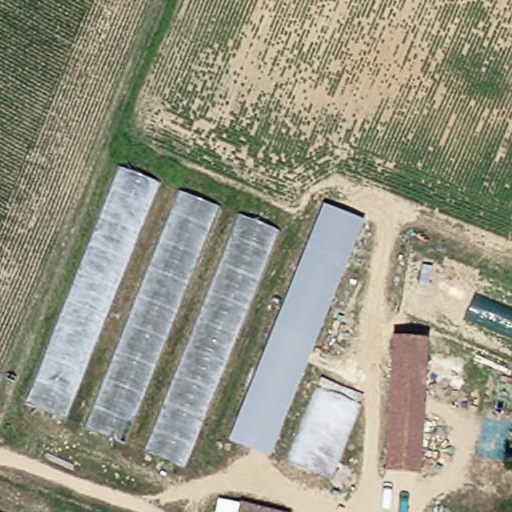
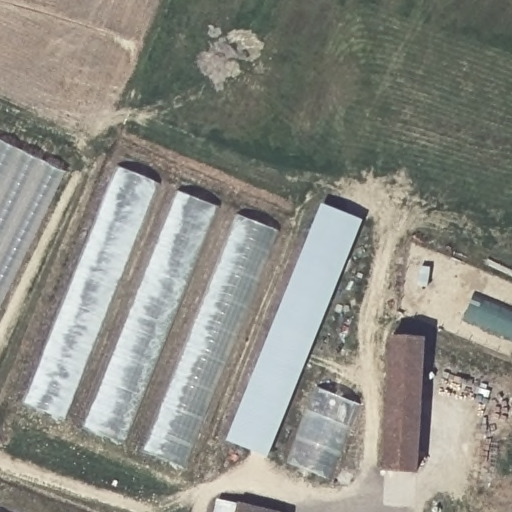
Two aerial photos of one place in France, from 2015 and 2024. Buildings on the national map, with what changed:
new [(0,303),(0,139),(64,170),(0,303)]
unchanged [(27,397),(121,162),(165,177),(76,412),(27,397)]
unchanged [(182,185),(227,202),(135,441),(87,422),(182,185)]
unchanged [(330,202),(372,216),(278,452),(235,436),(330,202)]
unchanged [(147,446),(242,207),(282,222),(192,464),(147,446)]
new [(512,310),(512,334),(465,315),(473,295),(512,310)]
unchanged [(402,336),(430,338),(421,466),(392,463),(402,336)]
unchanged [(362,397),(333,477),(287,462),(318,380),(362,397)]
unchanged [(301,510),(300,512),(223,512),(227,493),(250,498),(301,510)]

